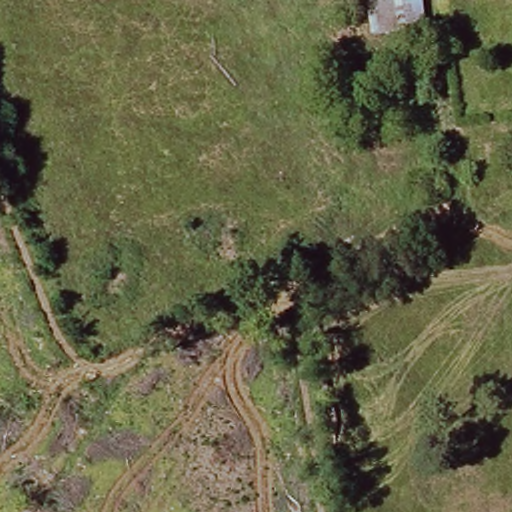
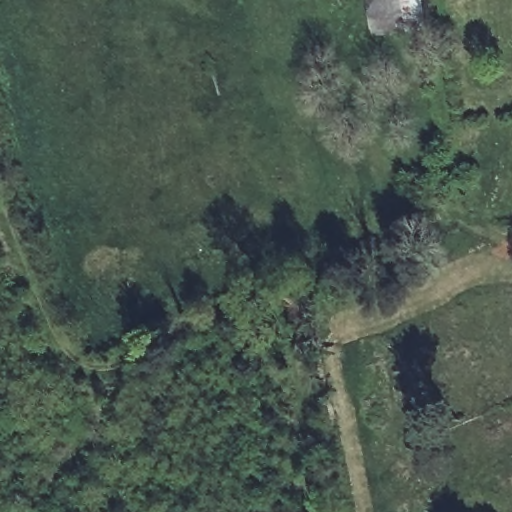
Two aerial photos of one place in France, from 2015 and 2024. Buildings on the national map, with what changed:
unchanged [(402,30),(368,34),(362,0),(412,0),(417,28),(402,30)]

